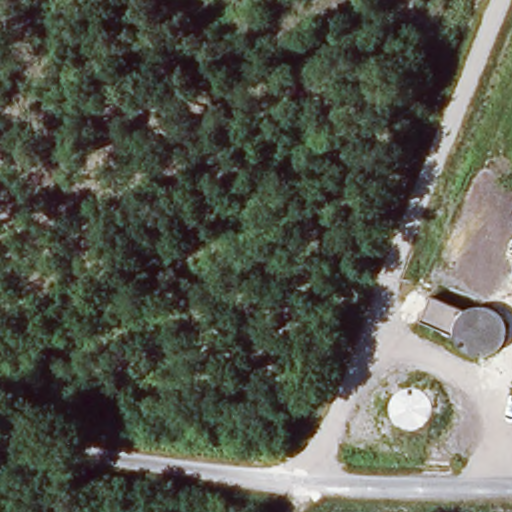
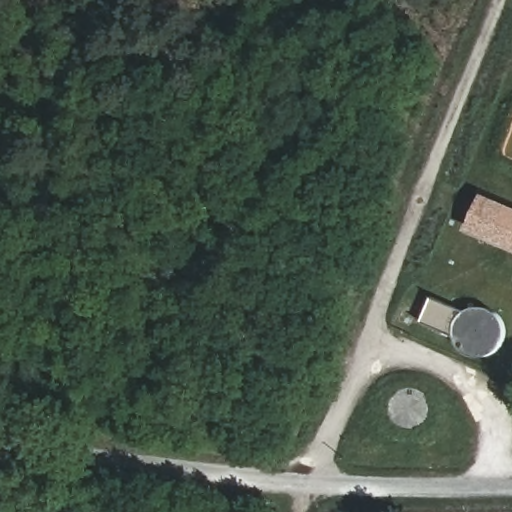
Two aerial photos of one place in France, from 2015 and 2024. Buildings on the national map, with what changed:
new [(482,192),(512,206),(512,249),(466,228),(482,192)]
unchanged [(400,411),(400,408),(400,406),(400,403),(401,401),(401,398),(403,396),(404,393),(406,392),(407,390),(410,388),(412,387),(414,386),(417,385),(419,385),(422,385),(424,385),(427,386),(429,387),(431,388),(433,390),(435,391),(436,393),(438,395),(439,397),(440,400),(440,402),(440,405),(440,407),(440,410),(439,412),(438,415),(436,417),(435,418),(433,421),(431,422),(428,423),(426,424),(424,425),(421,426),(418,426),(416,425),(413,425),(411,423),(409,422),(407,421),(405,420),(403,417),(402,415),(401,413),(400,411)]

